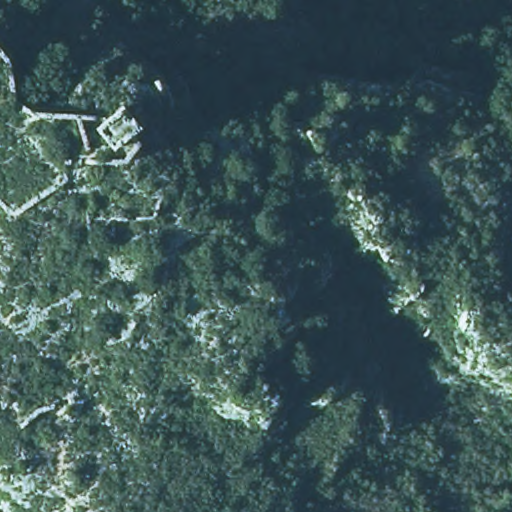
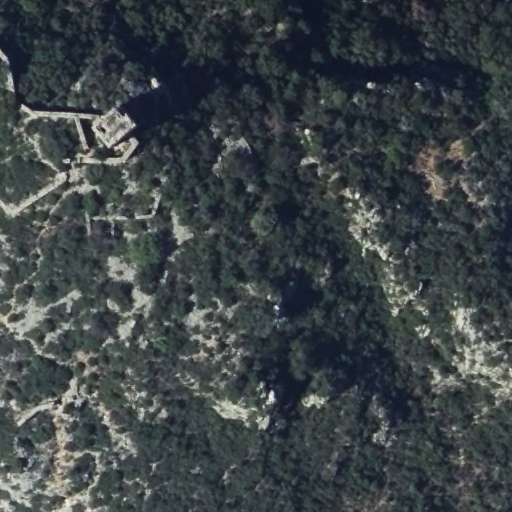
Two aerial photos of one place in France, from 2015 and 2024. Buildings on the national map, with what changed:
unchanged [(113,126),(131,146),(105,170),(86,150),(113,126)]

